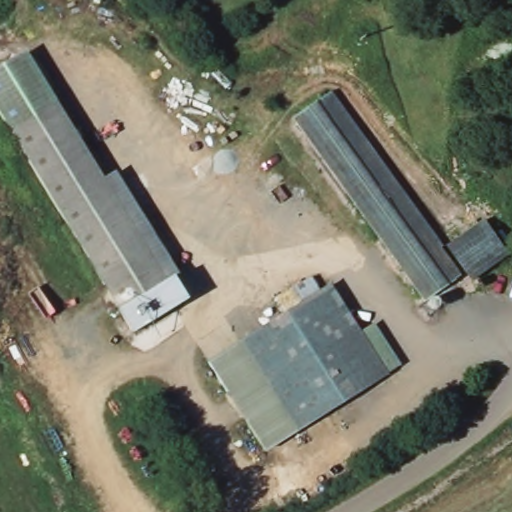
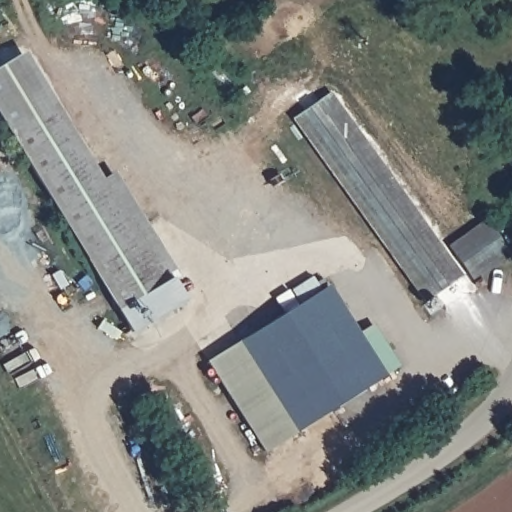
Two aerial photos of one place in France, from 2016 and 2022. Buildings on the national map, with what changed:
unchanged [(0,117),(0,66),(25,50),(164,283),(119,311),(0,117)]
unchanged [(295,119),(330,91),(448,249),(483,220),(511,256),(475,283),(467,273),(423,299),(295,119)]
unchanged [(286,315),(275,297),(311,277),(320,293),(286,315)]
unchanged [(297,428),(243,342),(330,287),(389,375),(297,428)]
unchanged [(374,322),(403,366),(389,375),(360,330),(374,322)]
unchanged [(297,428),(262,450),(209,363),(243,342),(297,428)]

